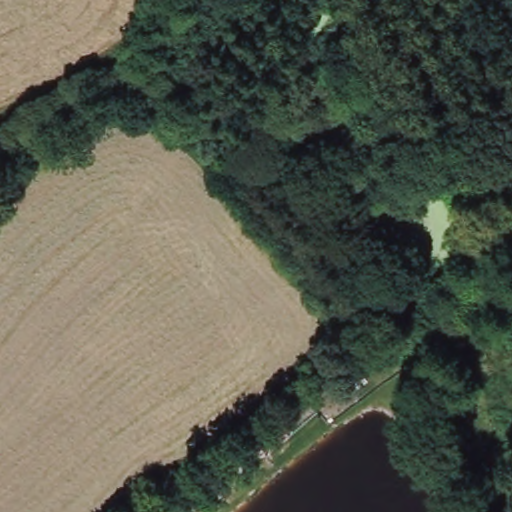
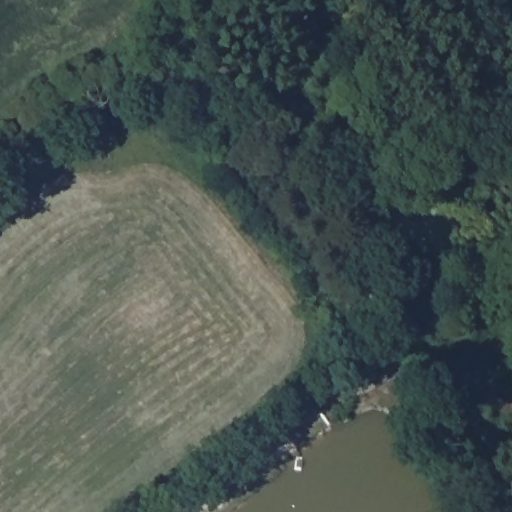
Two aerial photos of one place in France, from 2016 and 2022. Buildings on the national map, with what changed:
unchanged [(306,396),(317,410),(302,422),(291,409),(306,396)]

